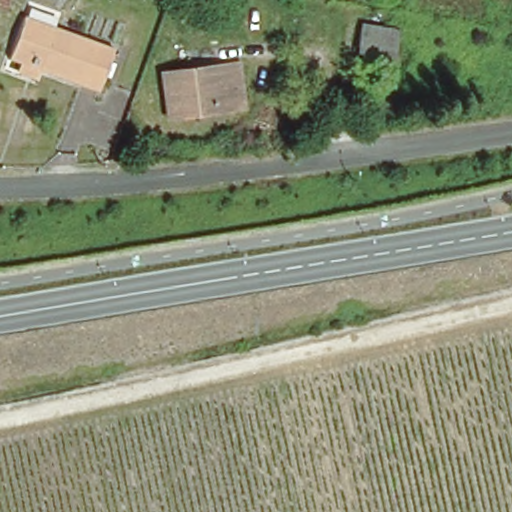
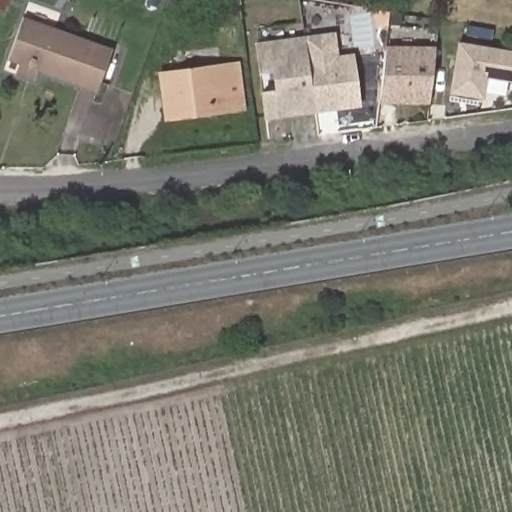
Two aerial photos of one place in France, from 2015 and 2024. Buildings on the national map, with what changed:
unchanged [(7,8),(0,5),(0,0),(10,0),(7,8)]
unchanged [(12,71),(15,62),(7,59),(23,19),(111,52),(95,93),(37,70),(34,79),(12,71)]
demolished [(401,52),(388,50),(365,47),(368,27),(390,30),(405,32),(401,52)]
new [(336,32),(338,55),(354,54),(361,107),(316,113),(304,36),(336,32)]
new [(255,43),(304,36),(316,113),(266,121),(262,92),(276,90),(272,71),(260,72),(255,43)]
new [(487,79),(484,100),(448,94),(457,41),(512,50),(512,83),(487,79)]
new [(385,45),(436,46),(432,75),(430,104),(379,104),(382,74),(385,45)]
unchanged [(199,119),(177,124),(167,80),(227,67),(236,102),(238,110),(199,119)]

